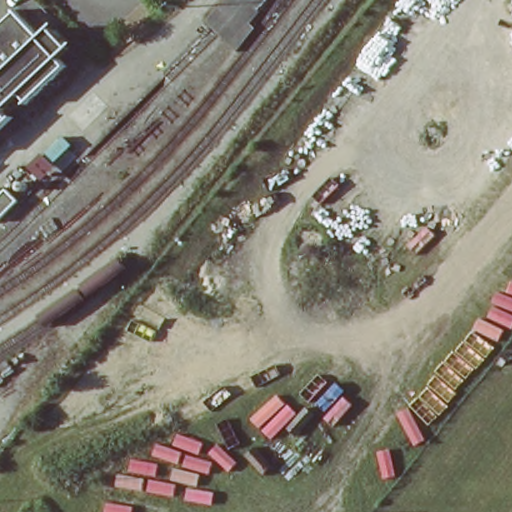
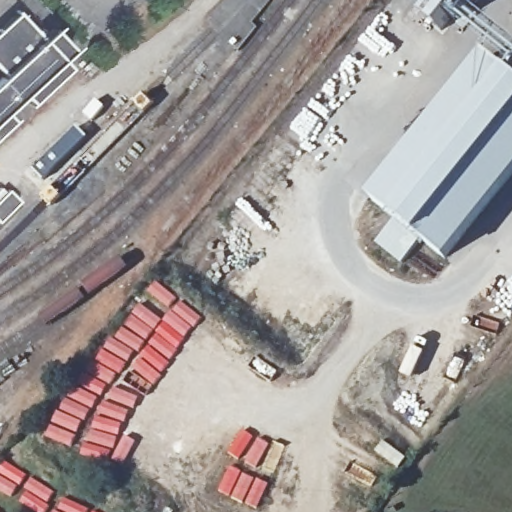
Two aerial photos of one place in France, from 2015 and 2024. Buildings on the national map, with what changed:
new [(455,0),(430,34),(408,16),(420,0),(455,0)]
unchanged [(14,16),(38,42),(48,33),(52,37),(55,34),(67,47),(64,49),(67,53),(57,63),(65,71),(27,107),(19,99),(0,116),(8,124),(0,132),(0,29),(14,16)]
new [(426,246),(401,264),(377,243),(398,228),(387,218),(390,216),(369,197),(486,55),(512,76),(512,180),(446,261),(426,246)]
unchanged [(0,221),(0,198),(8,190),(20,201),(0,221)]

